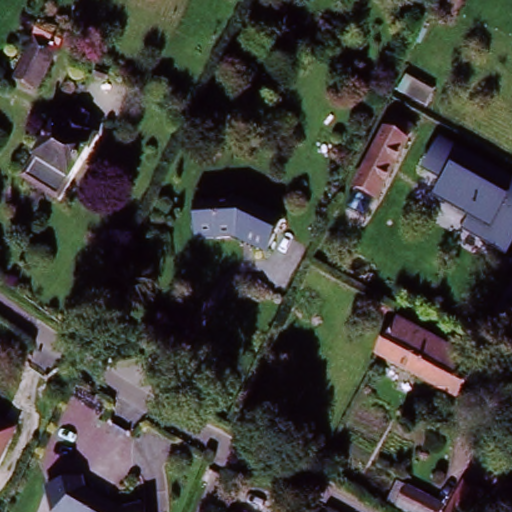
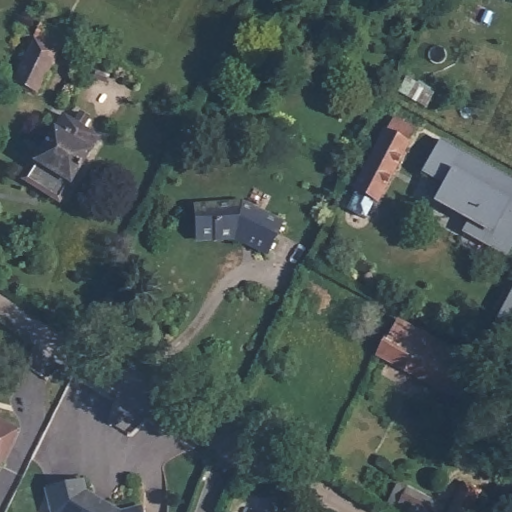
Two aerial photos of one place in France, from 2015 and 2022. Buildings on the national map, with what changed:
unchanged [(22,69),(25,60),(42,27),(62,39),(40,79),(22,69)]
unchanged [(21,185),(32,166),(50,137),(60,121),(76,132),(93,142),(65,186),(55,204),(21,185)]
unchanged [(337,217),(386,122),(409,135),(360,230),(337,217)]
unchanged [(512,250),(507,259),(462,232),(467,225),(435,205),(443,189),(422,175),(439,142),(512,181),(512,250)]
unchanged [(190,240),(188,214),(235,209),(275,229),(261,260),(228,245),(210,246),(190,249),(190,240)]
unchanged [(512,291),(512,362),(483,346),(512,291)]
unchanged [(462,356),(455,372),(392,340),(401,323),(462,356)]
unchanged [(465,378),(455,396),(376,355),(385,337),(392,340),(455,372),(465,378)]
unchanged [(6,430),(0,443),(0,427),(6,430)]
unchanged [(80,484),(83,496),(92,501),(90,507),(97,511),(103,509),(109,512),(49,512),(45,492),(80,484)]
unchanged [(471,512),(456,512),(470,487),(481,494),(471,512)]
unchanged [(446,509),(445,512),(402,512),(393,508),(403,490),(446,509)]

